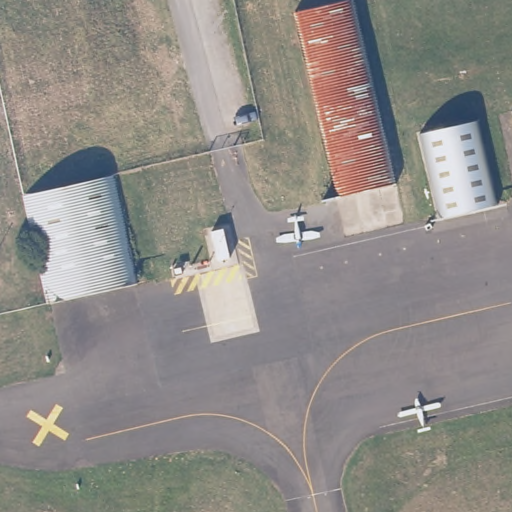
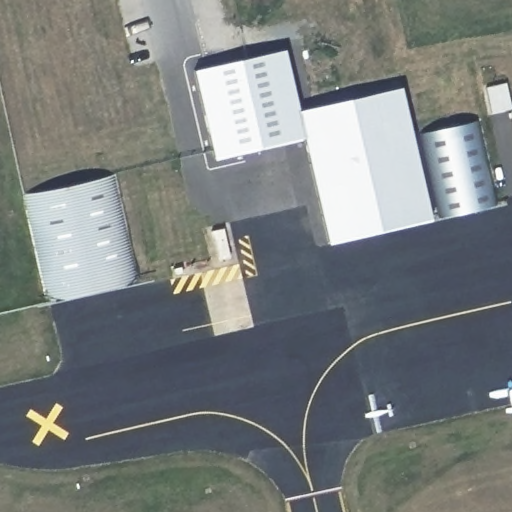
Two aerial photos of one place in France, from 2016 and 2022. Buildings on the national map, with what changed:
demolished [(395,183),(333,197),(291,12),(345,0),(354,0),(395,183)]
new [(304,139),(212,160),(191,68),(285,46),(300,107),(401,83),(433,219),(326,244),(304,139)]
unchanged [(482,119),(491,162),(442,173),(429,176),(419,133),(482,119)]
unchanged [(442,173),(491,162),(501,204),(438,218),(429,176),(442,173)]
unchanged [(138,283),(47,303),(23,192),(113,173),(138,283)]

